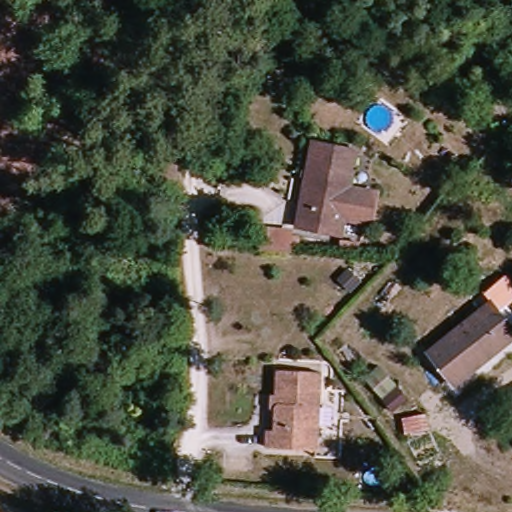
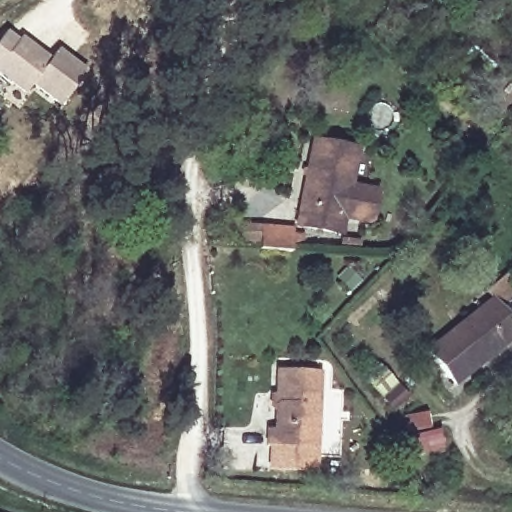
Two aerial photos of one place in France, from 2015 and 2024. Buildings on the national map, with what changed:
new [(17,40),(20,37),(50,59),(57,49),(85,70),(60,103),(32,82),(25,91),(0,72),(0,38),(5,31),(17,40)]
unchanged [(355,212),(352,229),(307,222),(320,137),(365,144),(360,182),(386,186),(381,216),(355,212)]
unchanged [(417,236),(397,260),(380,243),(401,221),(417,236)]
unchanged [(270,247),(271,227),(303,229),(302,248),(270,247)]
unchanged [(512,319),(512,348),(462,387),(435,352),(499,302),(512,319)]
unchanged [(404,400),(390,411),(363,380),(377,367),(404,400)]
unchanged [(329,452),(278,451),(278,430),(286,430),(286,372),(330,373),(329,452)]
unchanged [(428,431),(401,435),(400,416),(425,413),(428,431)]

